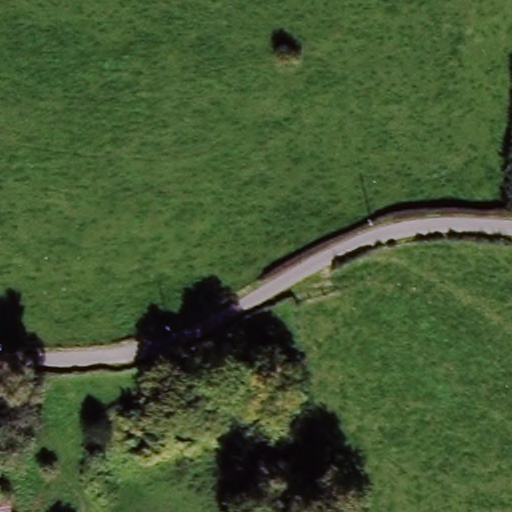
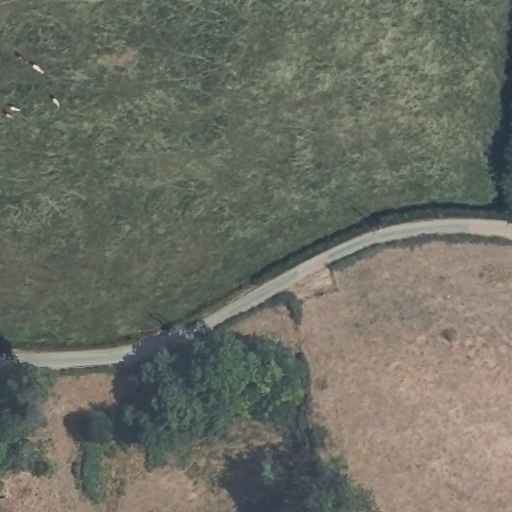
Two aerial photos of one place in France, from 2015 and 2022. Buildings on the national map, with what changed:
unchanged [(20,512),(0,512),(0,502),(18,499),(20,512)]

